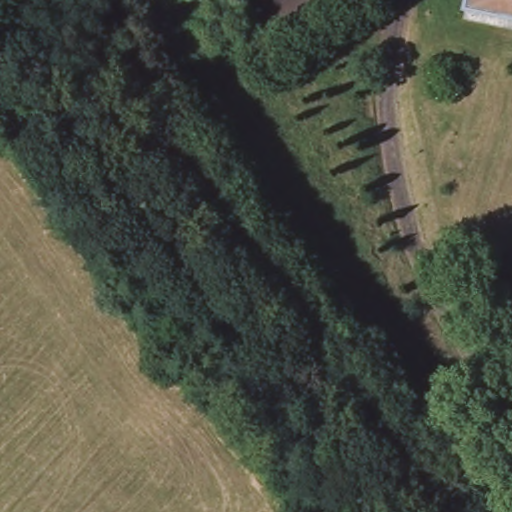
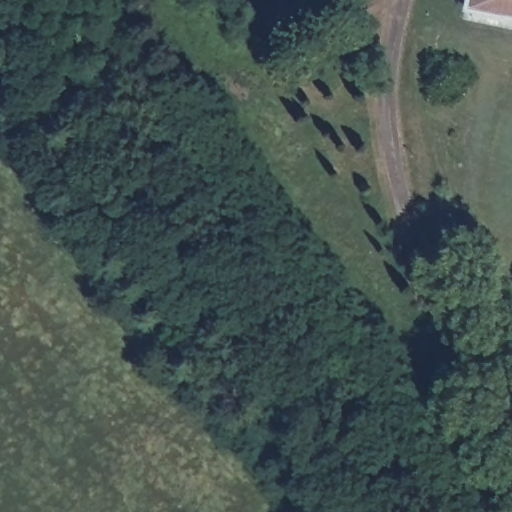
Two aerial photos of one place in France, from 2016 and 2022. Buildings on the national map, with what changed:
unchanged [(467,8),(468,0),(512,0),(512,17),(467,8)]

